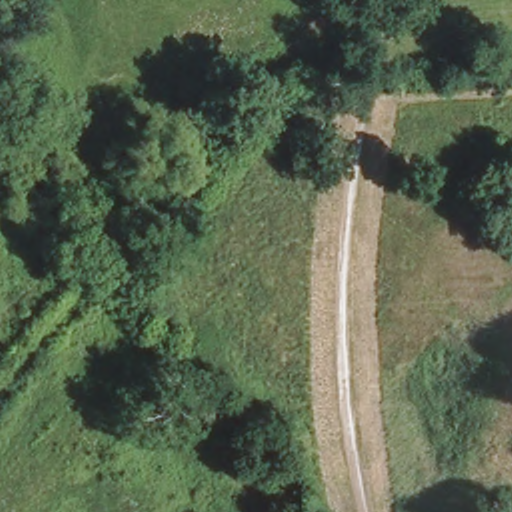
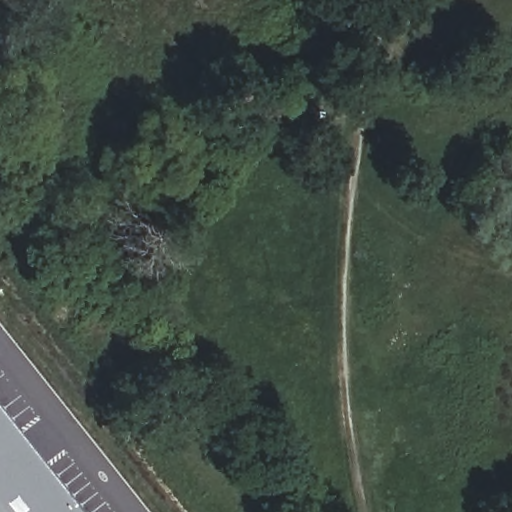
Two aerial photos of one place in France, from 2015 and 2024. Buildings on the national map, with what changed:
new [(0,413),(79,512),(0,512),(0,413)]

